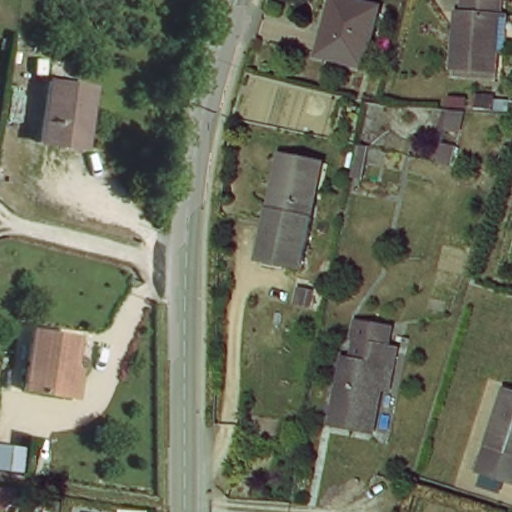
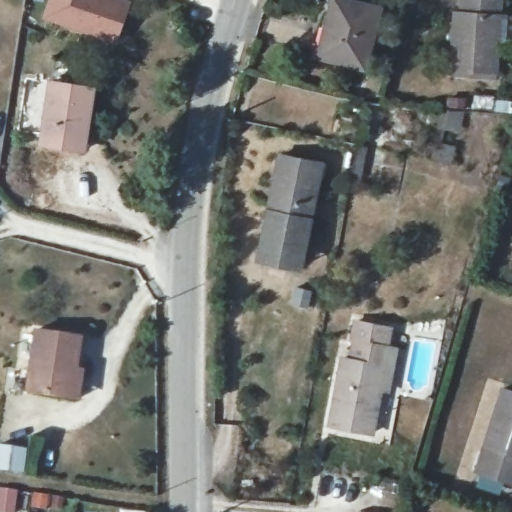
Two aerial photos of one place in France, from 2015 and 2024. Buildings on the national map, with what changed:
new [(54,8),(57,0),(137,0),(122,36),(54,8)]
unchanged [(319,55),(330,0),(345,0),(380,8),(366,65),(319,55)]
unchanged [(451,64),(452,9),(463,10),(463,0),(501,0),(498,66),(451,64)]
unchanged [(54,76),(97,83),(87,149),(44,141),(54,76)]
unchanged [(313,258),(271,258),(273,159),(313,159),(313,258)]
unchanged [(392,346),(401,348),(395,386),(387,383),(379,432),(341,424),(352,354),(357,356),(363,319),(395,324),(392,346)]
unchanged [(78,396),(65,394),(25,389),(35,327),(79,333),(74,366),(82,367),(78,396)]
unchanged [(475,471),(503,383),(512,385),(512,480),(475,471)]
unchanged [(30,478),(0,474),(0,450),(33,456),(30,478)]
unchanged [(67,511),(73,512),(66,512),(67,511)]

